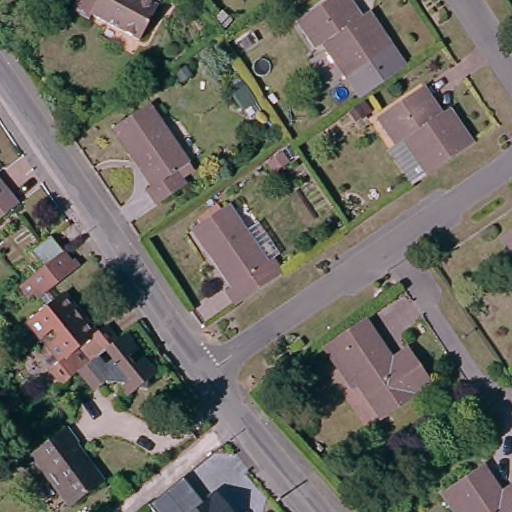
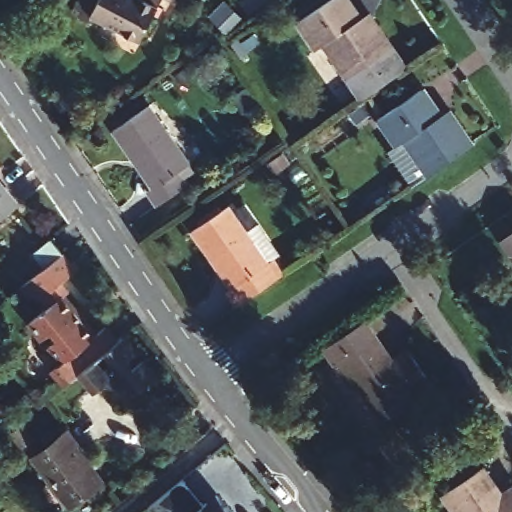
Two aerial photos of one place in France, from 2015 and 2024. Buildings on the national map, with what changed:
unchanged [(131,40),(83,14),(80,22),(63,13),(70,0),(151,0),(131,40)]
unchanged [(346,4),(356,19),(367,13),(388,42),(341,74),(320,39),(311,45),(292,17),(317,0),(344,0),(346,4)]
unchanged [(385,143),(393,138),(375,112),(416,83),(428,100),(439,115),(451,107),(472,136),(443,156),(410,179),(385,143)]
unchanged [(141,189),(152,181),(134,154),(128,157),(107,127),(143,101),(184,160),(171,169),(180,182),(151,202),(141,189)]
unchanged [(0,217),(0,187),(15,206),(0,217)]
unchanged [(218,285),(228,278),(210,252),(204,256),(184,227),(220,201),(260,258),(265,255),(274,270),(263,278),(228,302),(218,285)]
unchanged [(496,237),(512,226),(512,260),(496,237)]
unchanged [(46,389),(55,381),(51,376),(61,368),(48,352),(59,342),(53,335),(41,344),(28,327),(47,311),(41,302),(37,304),(31,298),(26,302),(18,292),(35,278),(46,269),(32,253),(49,239),(63,255),(77,271),(47,295),(55,304),(61,299),(96,340),(105,333),(112,342),(106,347),(100,352),(93,358),(91,359),(85,365),(80,369),(70,377),(62,383),(59,385),(50,393),(46,389)]
unchanged [(391,356),(405,347),(428,382),(378,416),(351,376),(345,380),(316,338),(360,309),(381,341),(391,356)]
unchanged [(130,353),(123,360),(130,368),(137,361),(150,377),(142,383),(141,393),(134,390),(128,395),(119,385),(106,380),(100,385),(93,385),(80,369),(85,365),(91,359),(93,358),(101,369),(108,363),(100,352),(106,347),(112,342),(117,338),(118,337),(130,353)]
unchanged [(26,434),(23,436),(28,444),(17,454),(5,439),(20,426),(26,434)]
unchanged [(74,443),(68,448),(98,483),(69,507),(30,461),(64,432),(74,443)]
unchanged [(500,492),(512,483),(512,512),(461,512),(460,511),(459,512),(454,512),(438,488),(478,461),(491,479),(500,492)]
unchanged [(198,512),(218,496),(231,512),(198,512)]

